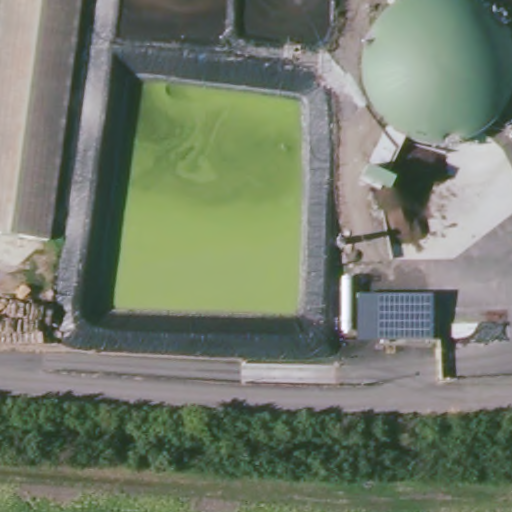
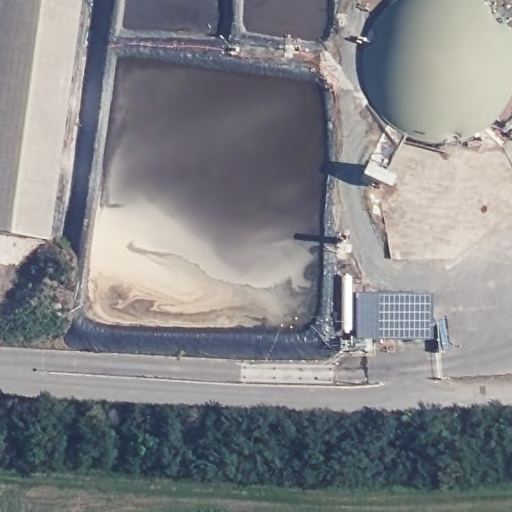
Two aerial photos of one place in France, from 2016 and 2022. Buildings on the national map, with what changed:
unchanged [(49,244),(0,237),(0,47),(6,0),(82,0),(49,244)]
unchanged [(431,295),(431,341),(356,341),(356,295),(431,295)]

